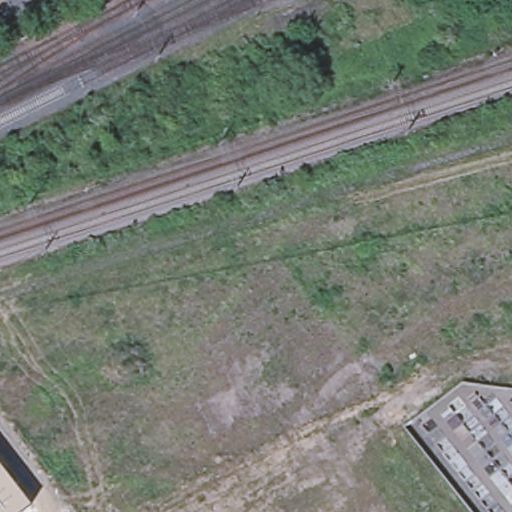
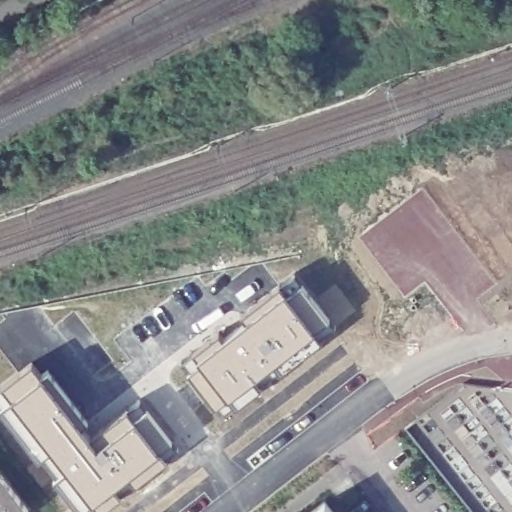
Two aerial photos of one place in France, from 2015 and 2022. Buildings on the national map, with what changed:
new [(222,414),(216,407),(181,361),(220,331),(224,337),(246,320),(242,314),(296,273),(331,319),(316,330),(324,340),(281,373),(274,363),(279,371),(261,385),(255,377),(262,387),(236,407),(228,397),(234,405),(222,414)]
new [(54,478),(66,468),(52,449),(39,459),(0,408),(0,407),(13,398),(3,384),(33,361),(43,374),(49,369),(89,421),(83,426),(91,437),(141,399),(173,441),(160,451),(168,460),(135,485),(128,475),(114,486),(121,496),(100,512),(93,502),(98,510),(96,512),(80,512),(54,478)]
new [(173,441),(179,449),(166,459),(160,451),(173,441)]
unchanged [(23,512),(0,512),(0,475),(26,509),(23,512)]
new [(128,475),(134,483),(120,494),(114,486),(128,475)]
new [(326,502),(333,512),(312,512),(326,502)]

